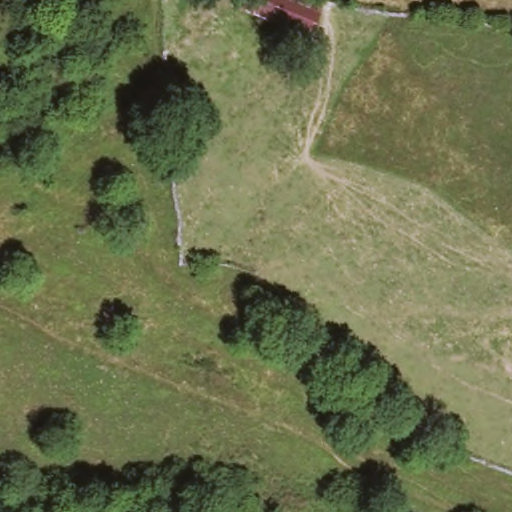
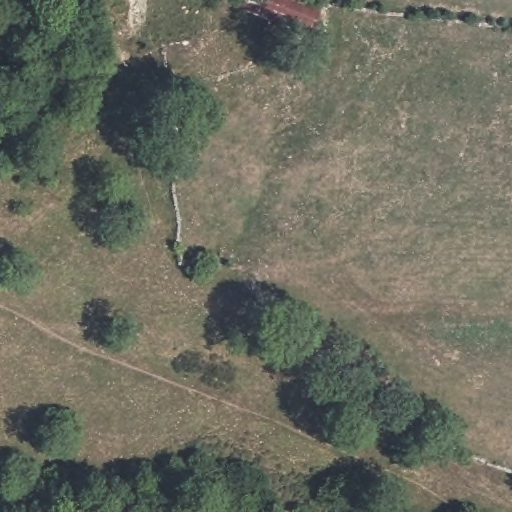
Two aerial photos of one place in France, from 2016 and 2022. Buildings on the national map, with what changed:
unchanged [(236,0),(306,0),(320,6),(312,30),(307,41),(232,9),(236,0)]

